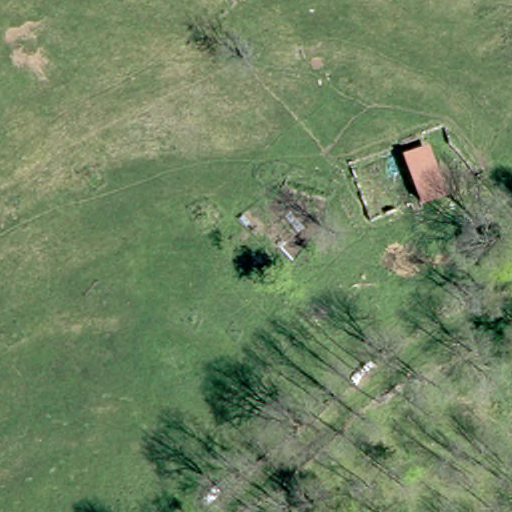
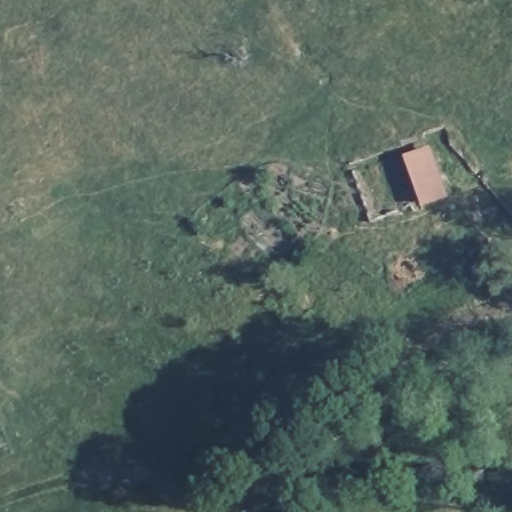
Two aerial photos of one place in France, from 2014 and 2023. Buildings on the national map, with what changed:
unchanged [(430,149),(448,195),(423,205),(406,157),(430,149)]

